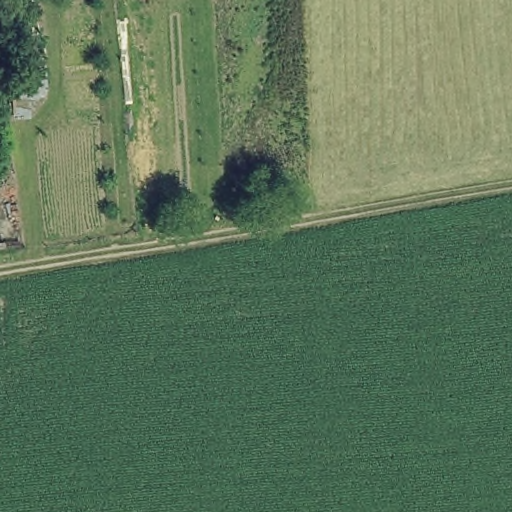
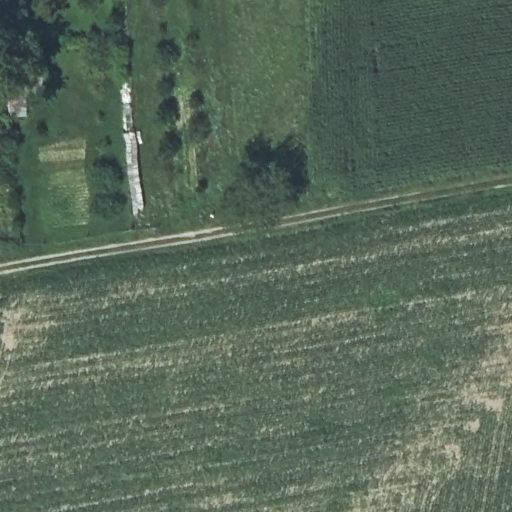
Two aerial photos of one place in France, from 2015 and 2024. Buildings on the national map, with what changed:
unchanged [(46,118),(10,119),(7,61),(23,60),(23,46),(44,45),(46,118)]

